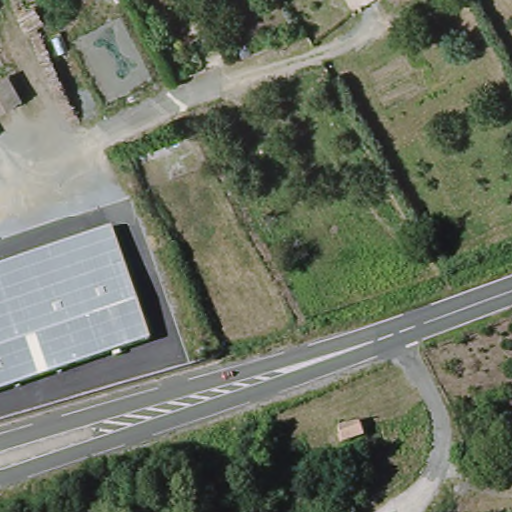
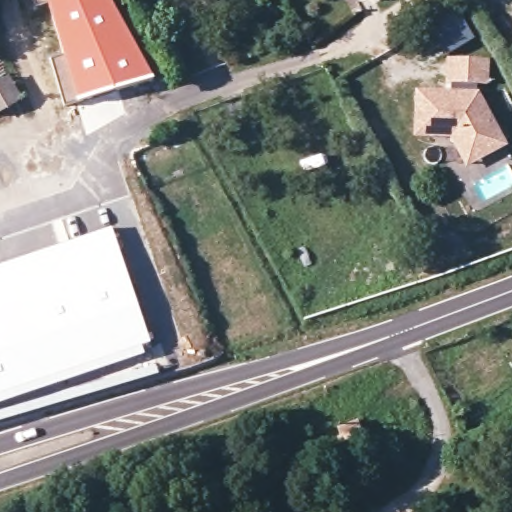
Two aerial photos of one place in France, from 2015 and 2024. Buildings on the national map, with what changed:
new [(45,0),(110,0),(151,77),(111,91),(74,101),(65,104),(51,60),(61,57),(45,0)]
new [(489,59),(489,84),(446,84),(446,59),(489,59)]
unchanged [(0,115),(0,87),(19,80),(29,103),(0,115)]
new [(479,91),(509,146),(465,169),(449,139),(414,138),(416,90),(479,91)]
unchanged [(0,266),(90,232),(106,226),(126,274),(143,313),(153,341),(129,350),(4,396),(0,398),(0,266)]
unchanged [(361,422),(368,435),(345,446),(338,432),(361,422)]

